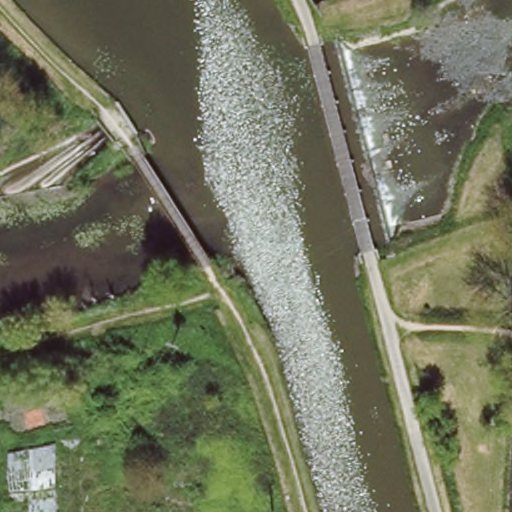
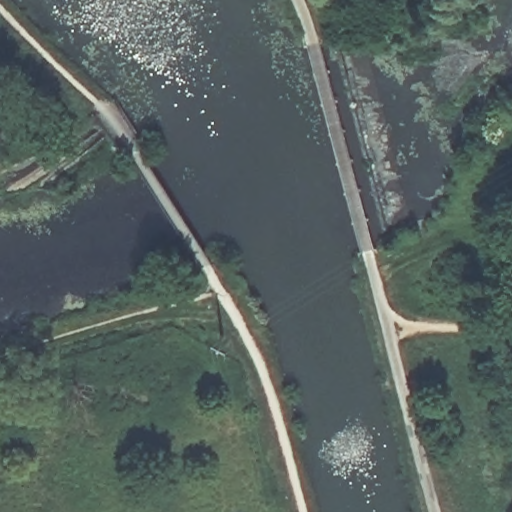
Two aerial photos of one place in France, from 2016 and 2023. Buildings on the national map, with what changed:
[]

